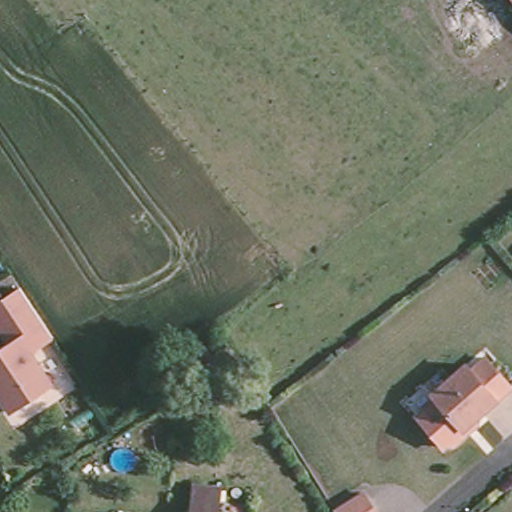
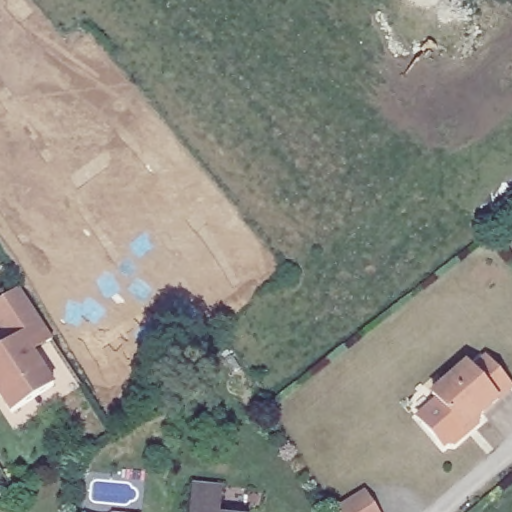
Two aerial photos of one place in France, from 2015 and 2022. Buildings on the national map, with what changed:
unchanged [(48,327),(50,329),(53,335),(33,348),(55,382),(13,410),(0,390),(0,346),(9,340),(0,326),(0,299),(20,285),(43,320),(48,327)]
unchanged [(464,430),(453,440),(447,438),(443,442),(418,413),(437,395),(432,390),(467,361),(472,365),(486,353),(512,382),(481,409),(480,417),(464,430)]
unchanged [(193,486),(222,489),(220,512),(190,512),(193,486)]
unchanged [(367,491),(381,512),(337,512),(336,511),(367,491)]

